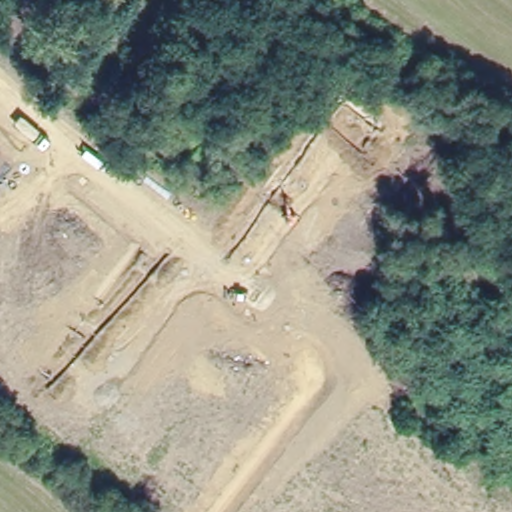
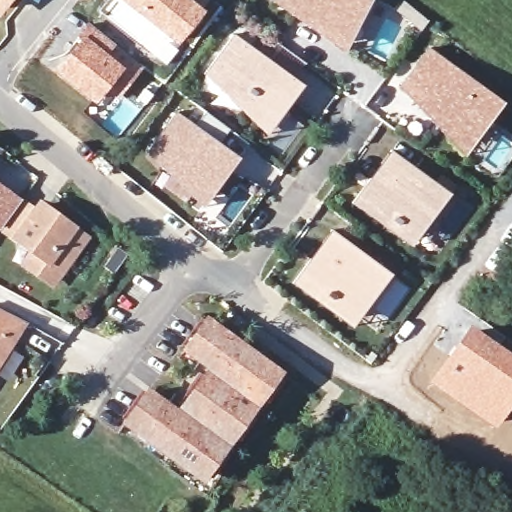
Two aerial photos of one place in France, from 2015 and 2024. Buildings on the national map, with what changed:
new [(12,0),(0,16),(0,0),(12,0)]
new [(145,27),(150,29),(152,27),(122,3),(119,7),(110,1),(111,0),(193,0),(203,8),(205,9),(177,48),(165,64),(131,35),(135,32),(138,34),(145,27)]
new [(193,0),(208,0),(203,8),(193,0)]
new [(289,13),(274,3),(275,0),(372,0),(362,20),(345,53),(311,28),(289,13)]
new [(406,17),(395,8),(401,0),(404,0),(414,8),(427,18),(420,28),(406,17)]
new [(114,99),(106,93),(96,104),(54,71),(89,23),(117,45),(142,66),(114,99)]
new [(206,74),(234,34),(303,84),(266,134),(206,74)]
new [(434,124),(417,105),(401,88),(404,83),(430,49),(503,104),(490,122),(464,157),(434,124)]
new [(149,152),(176,114),(238,158),(204,204),(149,152)]
new [(392,150),(397,154),(451,194),(436,214),(426,207),(408,230),(360,195),(372,179),(392,150)]
new [(0,224),(0,184),(6,188),(24,201),(36,210),(42,203),(87,237),(70,260),(68,259),(53,280),(27,262),(36,249),(5,227),(0,224)]
new [(360,195),(408,230),(426,207),(436,214),(413,247),(353,203),(360,195)]
new [(295,283),(333,230),(392,273),(352,327),(295,283)]
new [(27,324),(0,365),(0,310),(27,324)]
new [(151,394),(183,418),(190,408),(188,406),(209,378),(211,379),(218,369),(190,349),(209,322),(282,374),(263,401),(261,399),(254,409),(256,411),(235,439),(234,438),(226,448),(228,449),(208,478),(131,422),(151,394)]
new [(512,353),(512,405),(496,429),(428,382),(468,323),(512,353)]

